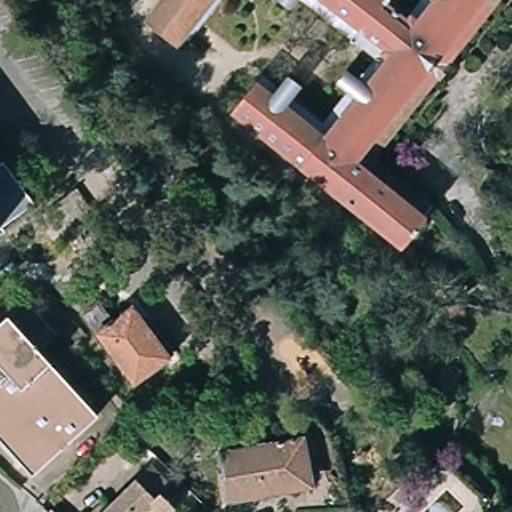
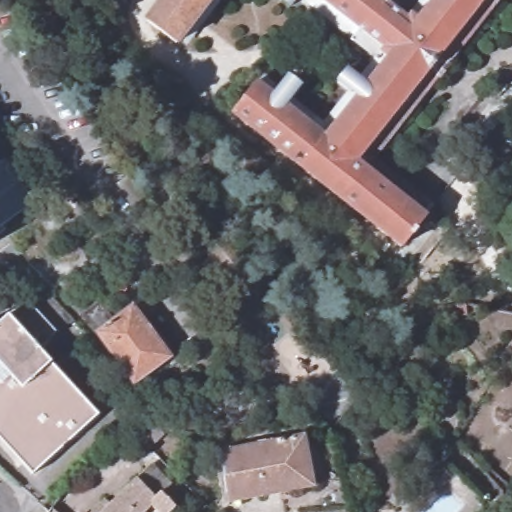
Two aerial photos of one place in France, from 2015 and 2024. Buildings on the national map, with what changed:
unchanged [(166,47),(137,23),(155,0),(203,0),(166,47)]
unchanged [(281,101),(321,133),(351,95),(332,80),(341,69),(361,84),(381,57),(308,0),(389,0),(405,12),(408,8),(415,14),(426,0),(474,0),(351,157),(421,212),(397,242),(229,109),(253,78),(269,91),(284,72),(297,82),(281,101)]
unchanged [(289,16),(276,6),(281,0),(301,0),(289,16)]
unchanged [(421,212),(351,157),(474,0),(491,0),(445,58),(433,74),(370,155),(429,202),(421,212)]
unchanged [(31,195),(0,219),(0,154),(31,195)]
unchanged [(13,320),(33,303),(55,329),(38,347),(95,412),(28,472),(0,440),(0,319),(6,313),(13,320)]
unchanged [(128,387),(79,320),(95,307),(108,326),(130,310),(166,359),(128,387)]
unchanged [(118,447),(131,444),(155,438),(159,442),(145,457),(139,452),(133,457),(118,447)]
unchanged [(213,455),(299,438),(310,488),(224,506),(213,455)]
unchanged [(170,486),(163,493),(173,497),(180,503),(172,512),(159,512),(152,506),(146,512),(108,512),(151,467),(170,486)]
unchanged [(94,512),(89,512),(91,510),(94,512)]

